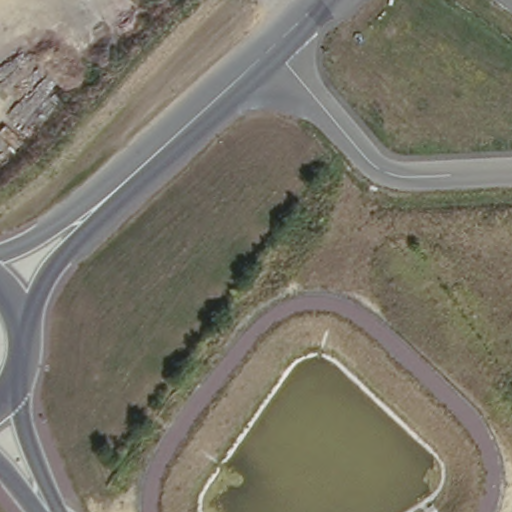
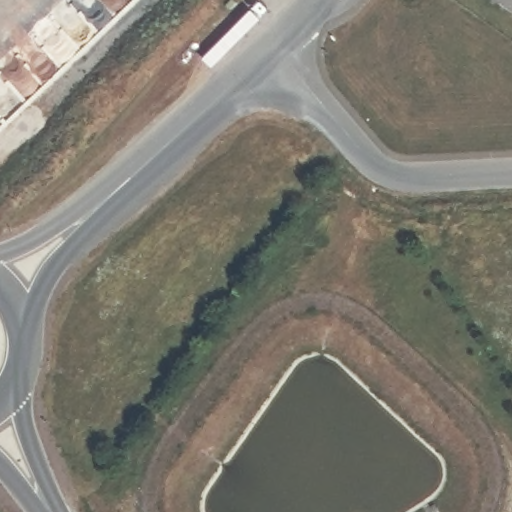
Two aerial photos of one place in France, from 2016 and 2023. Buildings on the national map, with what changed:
unchanged [(512,0),(512,8),(499,0),(512,0)]

